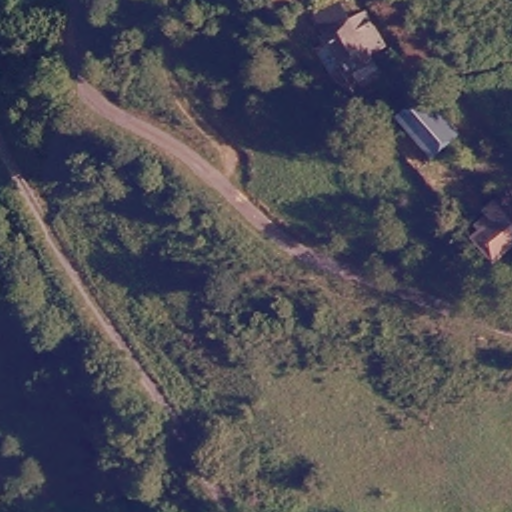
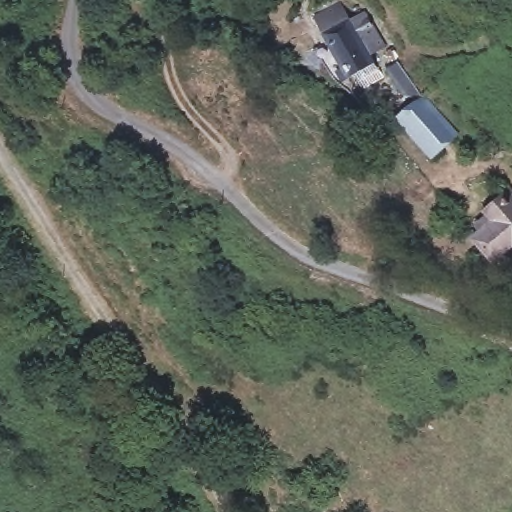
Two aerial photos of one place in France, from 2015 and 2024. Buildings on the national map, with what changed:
unchanged [(370,5),(377,21),(373,24),(362,31),(384,75),(364,86),(350,62),(341,67),(334,55),(338,53),(325,28),(353,14),(361,11),(370,5)]
unchanged [(421,97),(457,136),(434,156),(397,120),(421,97)]
unchanged [(492,221),(487,216),(511,191),(512,193),(512,203),(511,204),(512,206),(512,250),(512,249),(496,265),(479,245),(484,240),(479,232),(492,221)]

